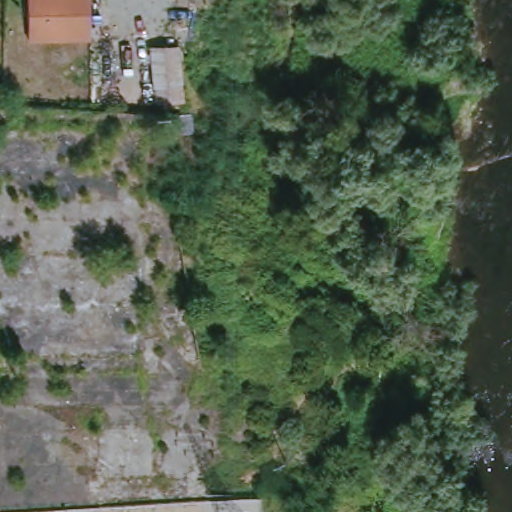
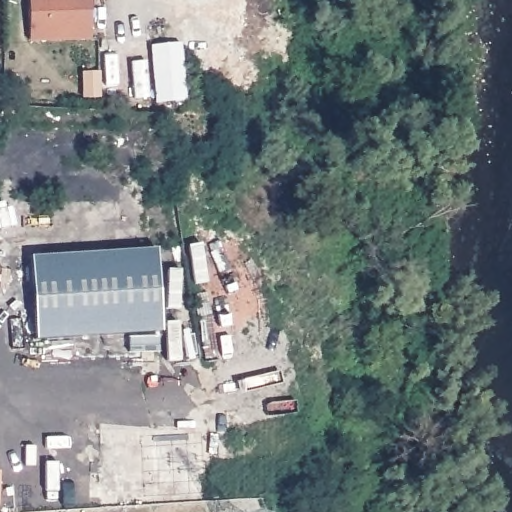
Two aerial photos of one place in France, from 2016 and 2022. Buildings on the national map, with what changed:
unchanged [(31,41),(28,0),(90,0),(92,37),(31,41)]
new [(30,257),(155,250),(161,332),(35,340),(30,257)]

